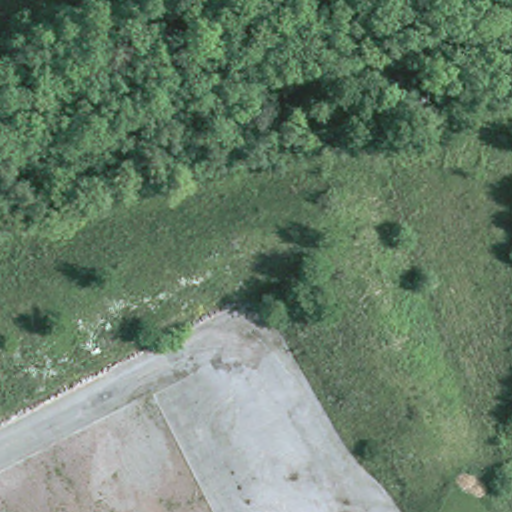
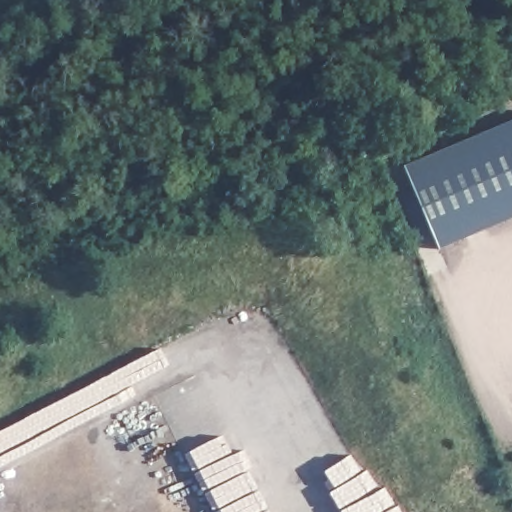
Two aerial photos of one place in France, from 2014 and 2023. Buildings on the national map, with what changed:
new [(512,124),(512,222),(442,252),(406,169),(512,124)]

